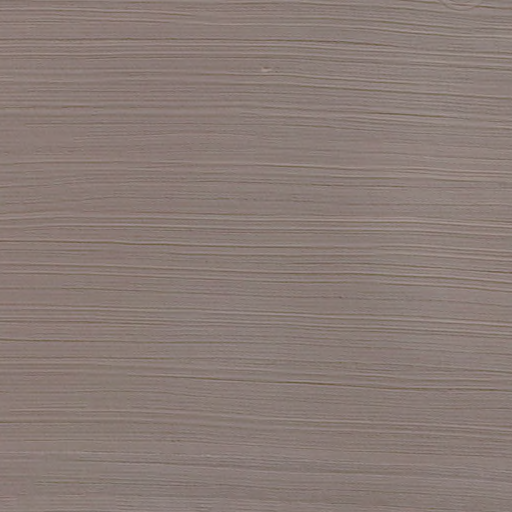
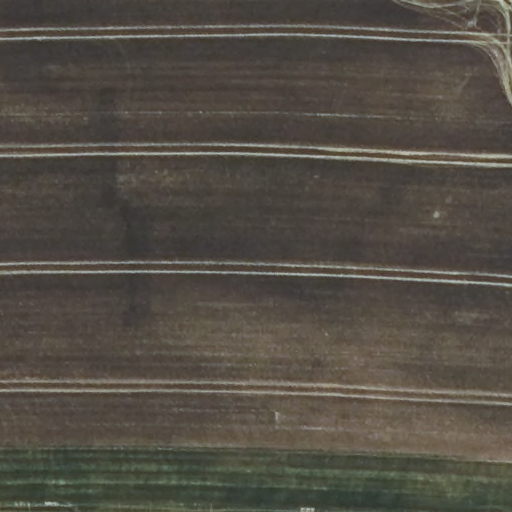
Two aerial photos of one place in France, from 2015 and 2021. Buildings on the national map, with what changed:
[]

